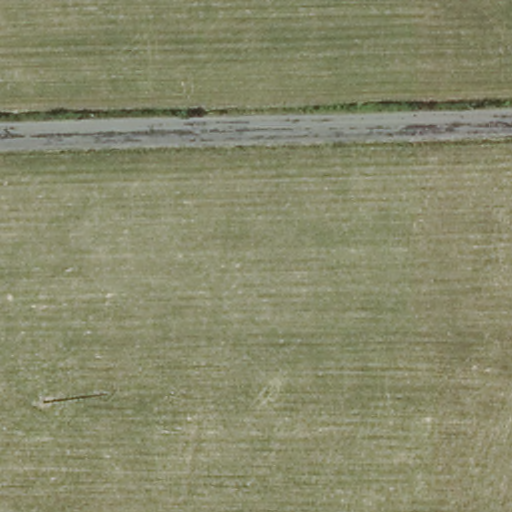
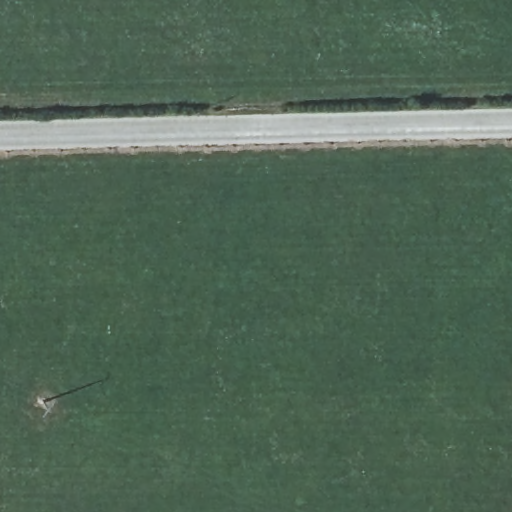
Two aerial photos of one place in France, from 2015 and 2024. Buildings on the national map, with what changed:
[]

